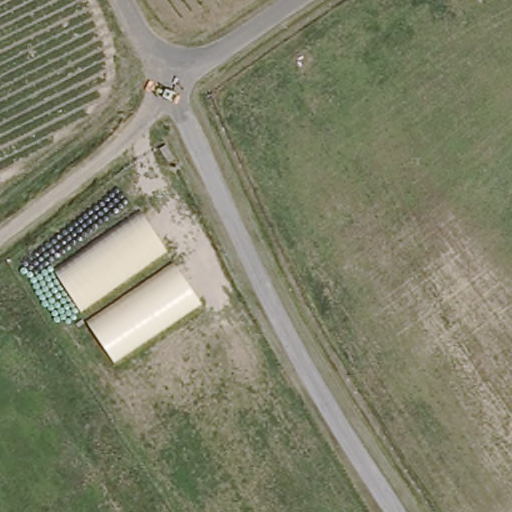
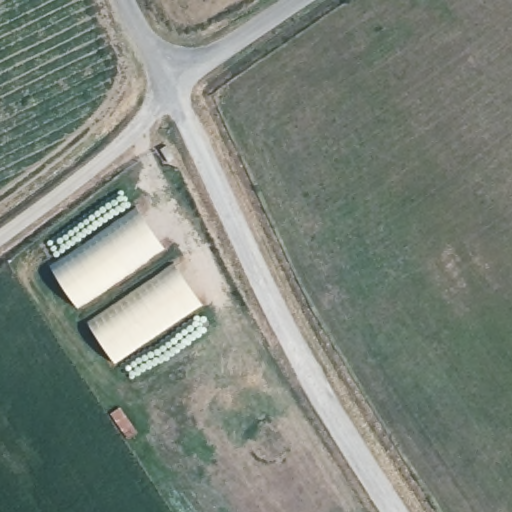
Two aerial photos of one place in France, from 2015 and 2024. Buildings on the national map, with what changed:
unchanged [(165,249),(80,307),(58,272),(140,214),(165,249)]
unchanged [(199,301),(112,358),(90,325),(175,267),(199,301)]

